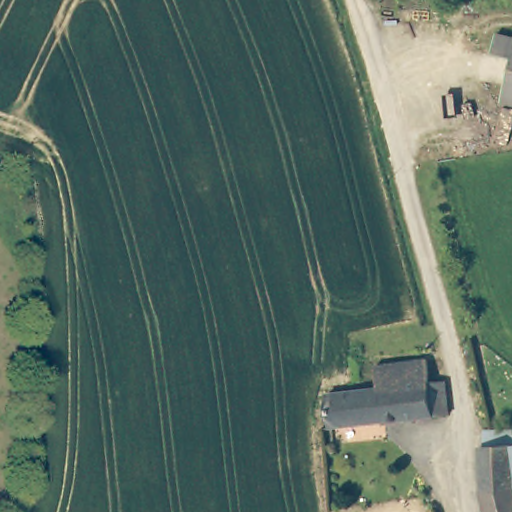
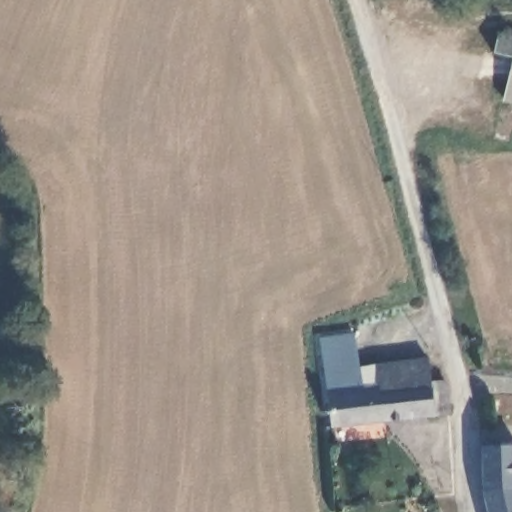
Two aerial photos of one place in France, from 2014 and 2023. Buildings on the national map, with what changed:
unchanged [(509,66),(490,60),(496,39),(512,43),(512,105),(501,103),(509,66)]
new [(360,364),(377,363),(378,388),(332,393),(327,393),(321,338),(354,333),(360,364)]
unchanged [(377,363),(427,359),(430,382),(382,387),(378,388),(377,363)]
unchanged [(382,387),(430,382),(452,379),(453,414),(336,428),(332,393),(378,388),(382,387)]
unchanged [(485,495),(483,443),(512,442),(512,512),(490,512),(485,495)]

